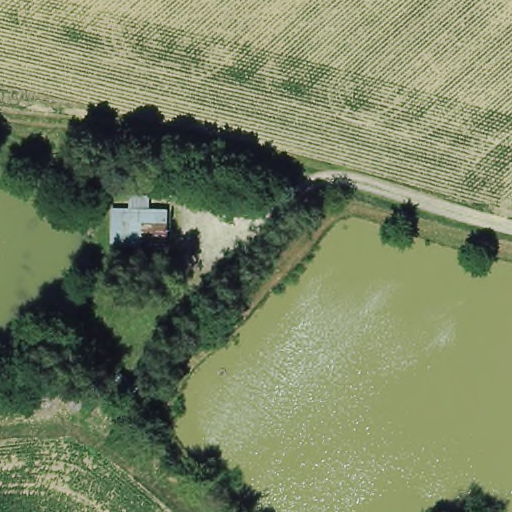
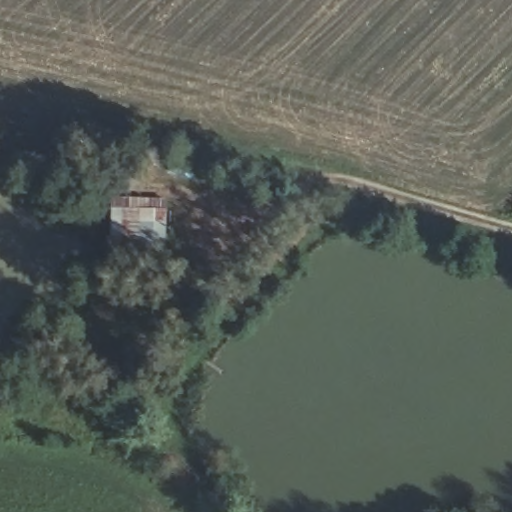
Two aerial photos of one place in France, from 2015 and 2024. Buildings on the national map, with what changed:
unchanged [(113,206),(129,206),(130,195),(153,196),(153,203),(169,204),(168,252),(110,251),(113,206)]
unchanged [(105,389),(123,373),(144,395),(127,408),(105,389)]

